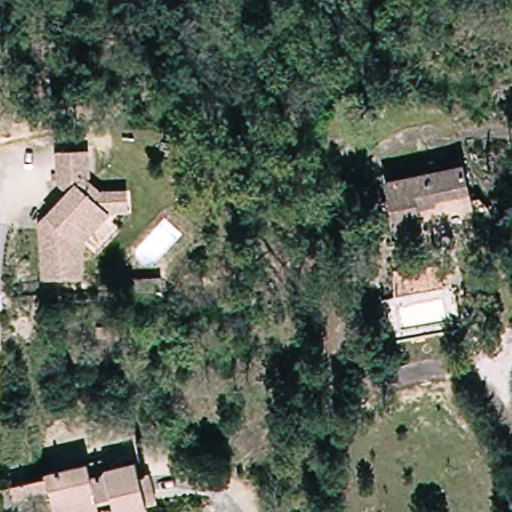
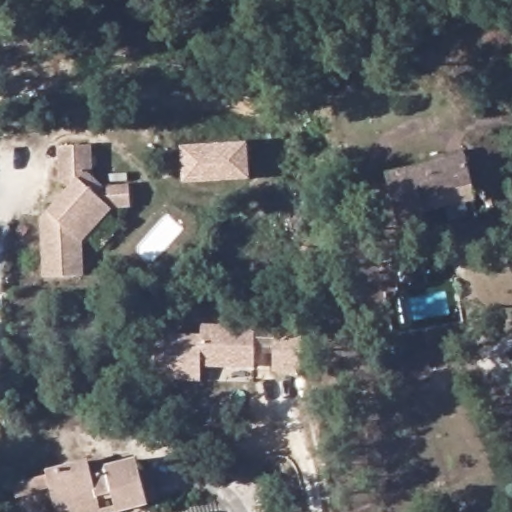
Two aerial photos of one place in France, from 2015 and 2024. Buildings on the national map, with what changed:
unchanged [(101,137),(103,164),(99,165),(103,184),(131,180),(135,200),(115,204),(85,238),(88,274),(50,275),(45,214),(73,182),(61,171),(58,139),(101,137)]
new [(248,143),(251,180),(183,185),(181,148),(248,143)]
unchanged [(473,146),(478,174),(447,179),(448,184),(427,188),(429,199),(432,215),(403,219),(393,165),(436,159),(435,152),(473,146)]
new [(429,199),(427,188),(448,184),(447,179),(478,174),(482,199),(473,202),(476,221),(435,229),(432,215),(429,199)]
unchanged [(303,209),(316,215),(312,229),(298,224),(303,209)]
unchanged [(121,267),(161,266),(162,279),(122,280),(121,267)]
new [(254,369),(201,367),(201,382),(153,379),(154,334),(201,336),(201,324),(255,328),(254,369)]
unchanged [(95,473),(96,478),(112,474),(110,464),(144,459),(148,476),(155,509),(138,512),(120,512),(116,495),(100,498),(104,512),(58,512),(53,488),(17,497),(14,484),(50,476),(49,471),(93,462),(95,473)]

